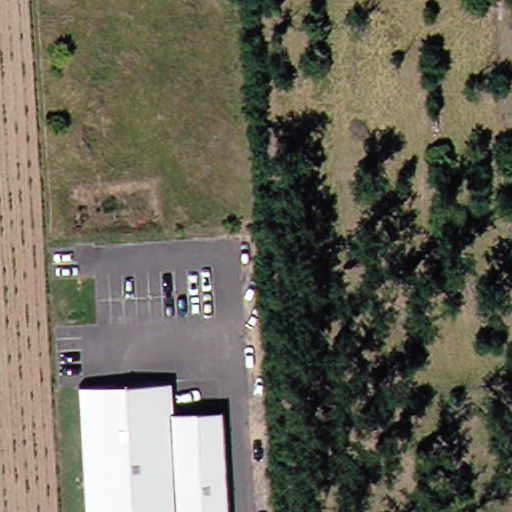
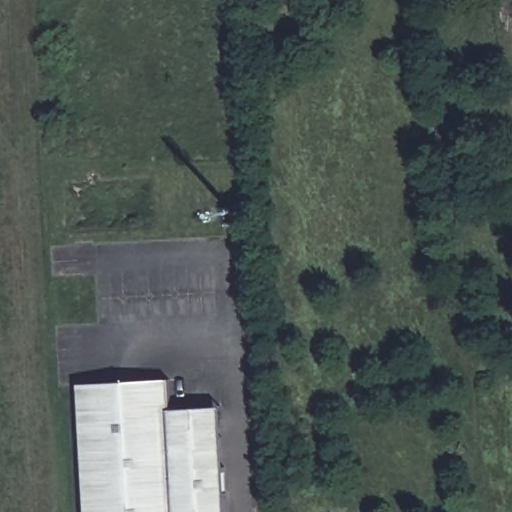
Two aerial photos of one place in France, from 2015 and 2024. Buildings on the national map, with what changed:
unchanged [(75,386),(166,381),(168,411),(172,471),(206,469),(222,468),(224,512),(83,512),(75,386)]
unchanged [(203,409),(218,408),(222,468),(206,469),(172,471),(168,411),(203,409)]

